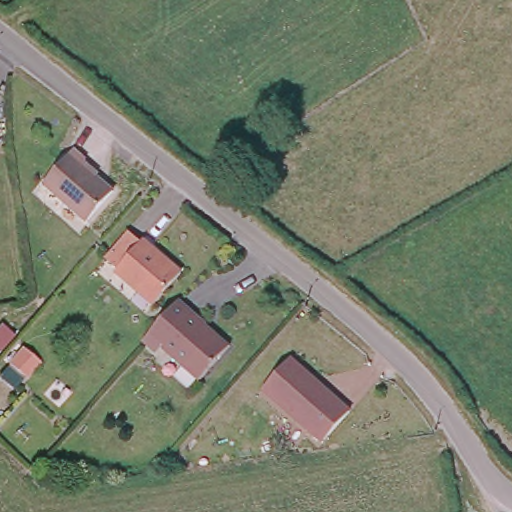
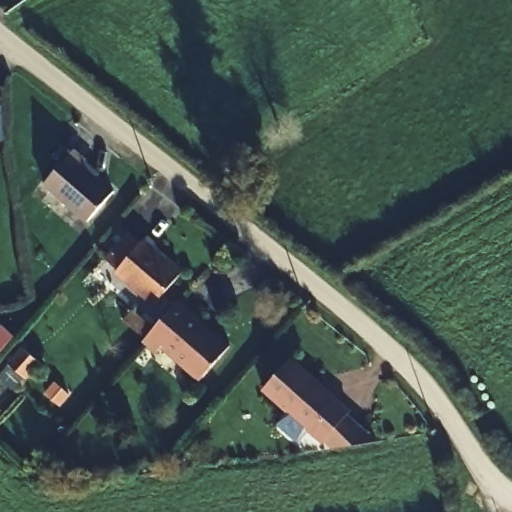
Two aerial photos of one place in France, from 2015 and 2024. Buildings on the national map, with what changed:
unchanged [(114,192),(87,222),(44,184),(74,150),(87,161),(83,165),(114,192)]
unchanged [(137,237),(138,236),(177,268),(150,299),(112,266),(114,264),(102,254),(125,227),(137,237)]
unchanged [(162,341),(157,347),(144,335),(178,296),(206,320),(205,321),(230,342),(200,375),(162,341)]
unchanged [(23,349),(39,362),(24,379),(9,365),(23,349)]
unchanged [(324,442),(264,389),(290,359),(350,412),(324,442)]

